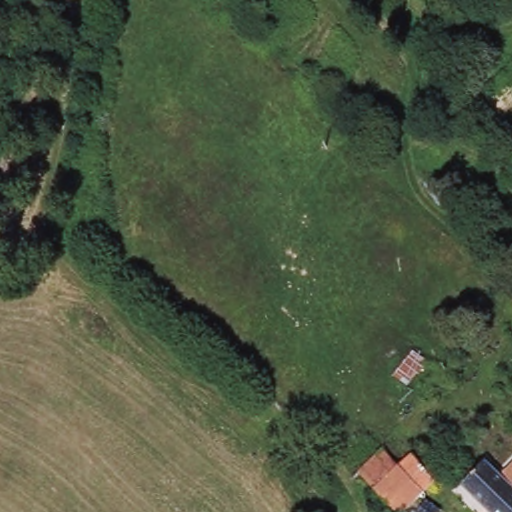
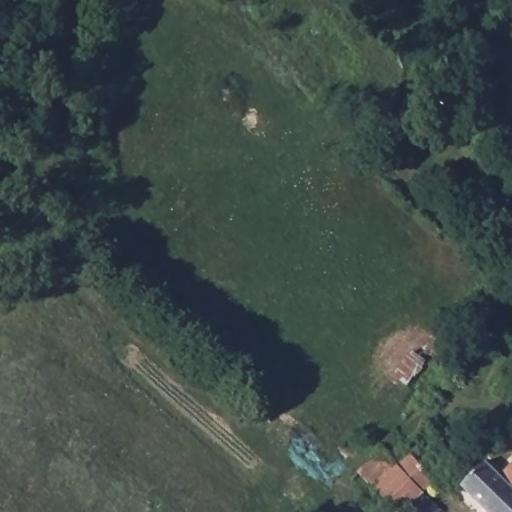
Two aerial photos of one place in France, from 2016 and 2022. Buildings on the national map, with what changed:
unchanged [(404,512),(364,469),(387,451),(404,467),(417,455),(434,470),(443,461),(456,475),(444,486),(440,482),(405,512),(404,512)]
unchanged [(486,512),(463,491),(487,466),(502,480),(512,468),(512,512),(486,512)]

